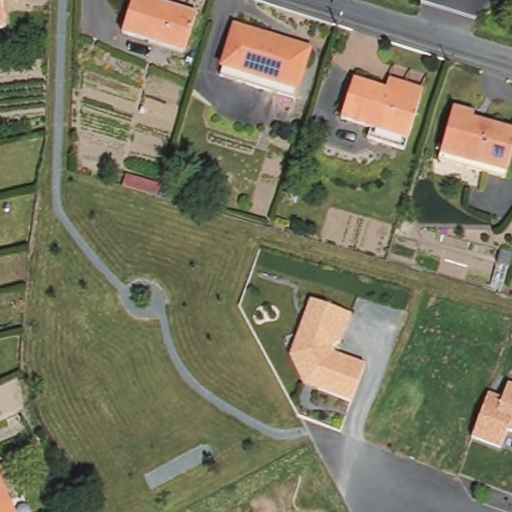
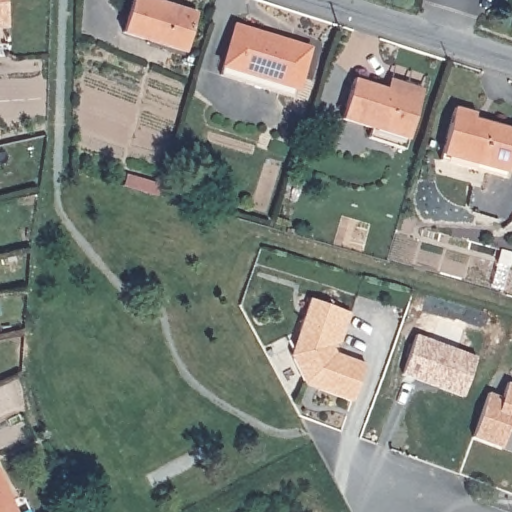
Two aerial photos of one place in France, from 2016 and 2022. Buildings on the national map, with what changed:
unchanged [(0,28),(0,0),(2,0),(5,27),(0,28)]
unchanged [(148,0),(197,15),(184,51),(123,32),(133,0),(148,0)]
unchanged [(237,21),(309,42),(293,90),(221,69),(237,21)]
unchanged [(353,75),(399,89),(401,84),(423,91),(406,148),(367,137),(371,126),(340,117),(353,75)]
unchanged [(454,101),(477,109),(475,115),(512,126),(512,154),(506,176),(438,156),(454,101)]
unchanged [(342,342),(333,347),(337,353),(366,365),(353,402),(304,383),(290,353),(313,297),(352,311),(342,342)]
new [(402,373),(418,333),(478,356),(463,397),(402,373)]
unchanged [(504,396),(509,381),(512,382),(512,433),(508,431),(502,450),(472,438),(489,391),(504,396)]
unchanged [(0,479),(16,512),(0,512),(0,479)]

